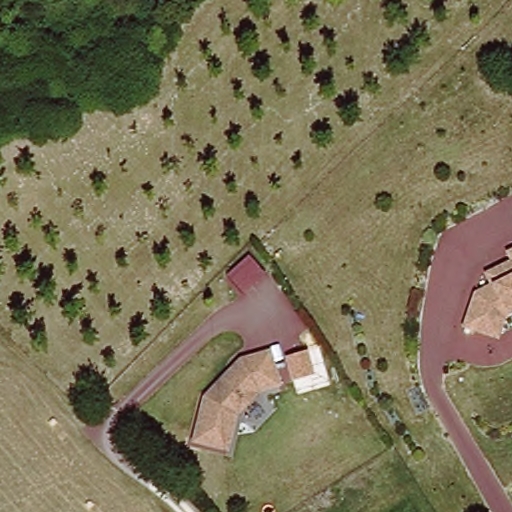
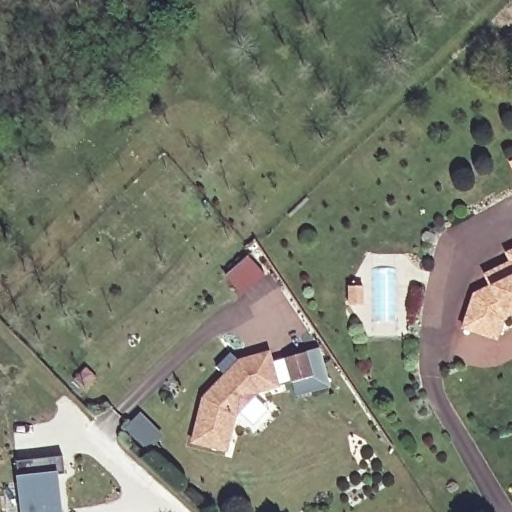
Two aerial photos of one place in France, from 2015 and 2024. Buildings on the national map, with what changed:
unchanged [(511,252),(512,251),(512,253),(511,252)]
unchanged [(509,318),(502,336),(469,326),(479,293),(496,284),(489,273),(512,260),(512,316),(509,318)]
unchanged [(317,378),(261,395),(240,416),(233,452),(196,444),(206,394),(239,359),(273,348),(276,360),(309,349),(317,378)]
new [(68,477),(60,478),(64,507),(65,512),(25,512),(20,464),(66,458),(68,477)]

